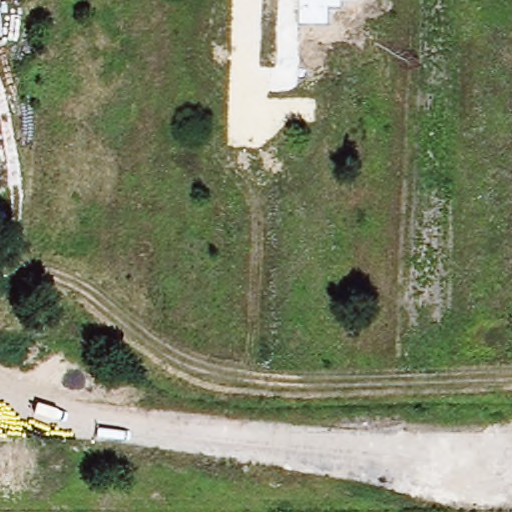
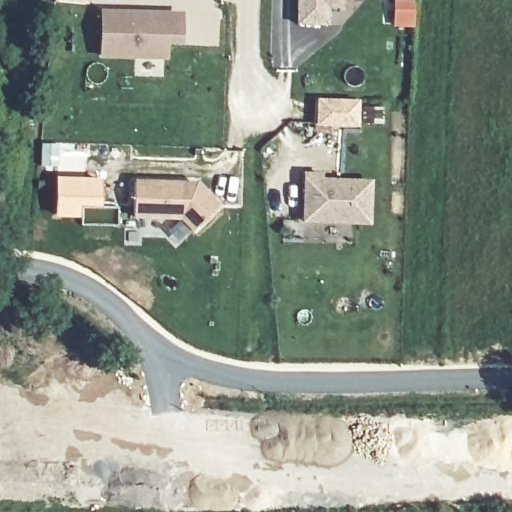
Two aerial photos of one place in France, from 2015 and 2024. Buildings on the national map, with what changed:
new [(86,0),(85,7),(55,4),(56,0),(86,0)]
new [(339,9),(325,9),(325,26),(296,25),(297,0),(353,0),(340,1),(339,9)]
new [(102,14),(180,16),(179,43),(164,43),(164,58),(101,56),(102,14)]
new [(54,175),(101,177),(99,204),(91,204),(91,202),(81,202),(80,218),(52,217),(54,175)]
new [(305,175),(321,176),(320,182),(370,184),(368,225),(303,223),(305,175)]
new [(134,182),(196,184),(218,207),(193,231),(181,218),(133,217),(134,182)]

